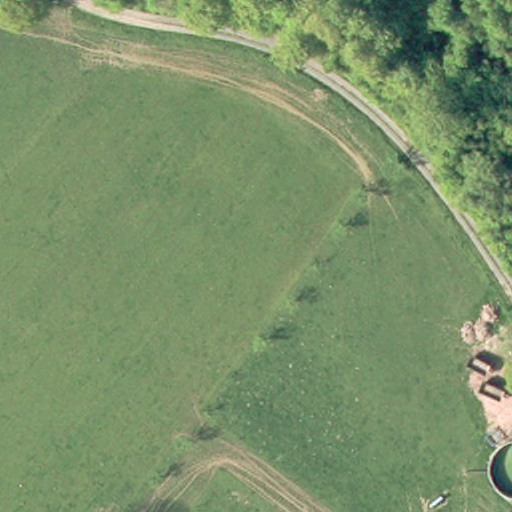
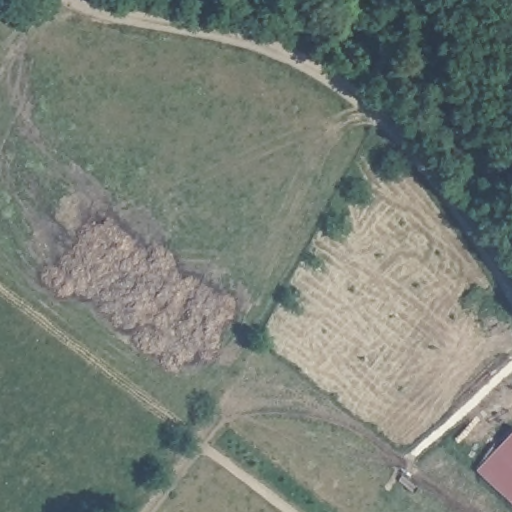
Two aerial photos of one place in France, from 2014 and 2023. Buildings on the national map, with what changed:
new [(477,471),(512,433),(512,503),(477,471)]

